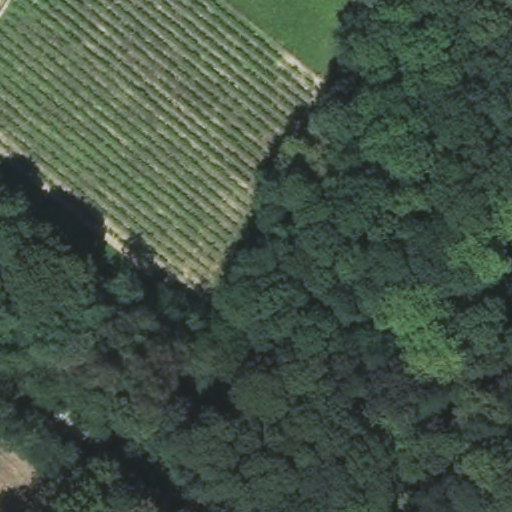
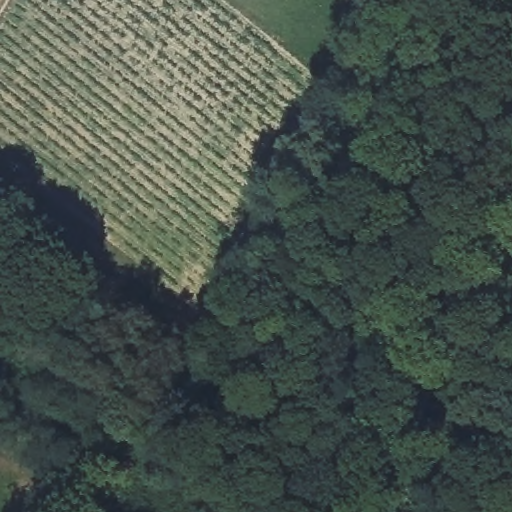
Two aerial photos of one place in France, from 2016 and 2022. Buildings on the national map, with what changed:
unchanged [(19,309),(76,355),(65,366),(7,321),(19,309)]

